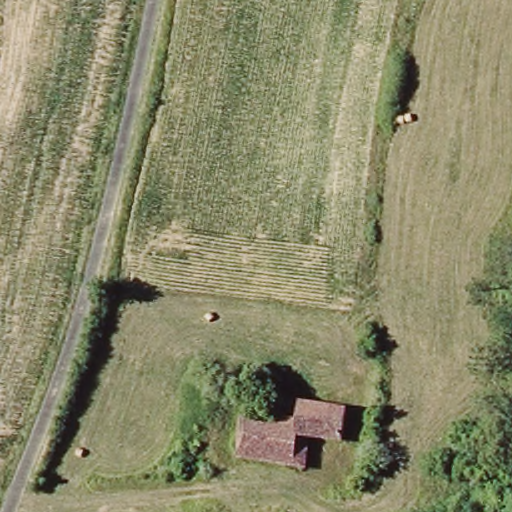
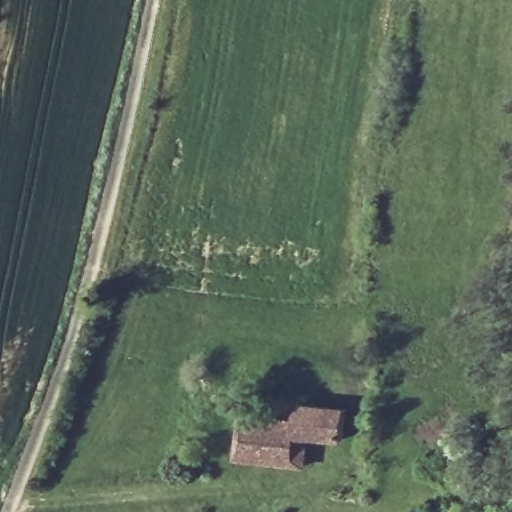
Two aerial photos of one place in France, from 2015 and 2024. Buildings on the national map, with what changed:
unchanged [(304,466),(237,455),(243,415),(294,423),(297,403),(346,410),(341,443),(308,438),(304,466)]

